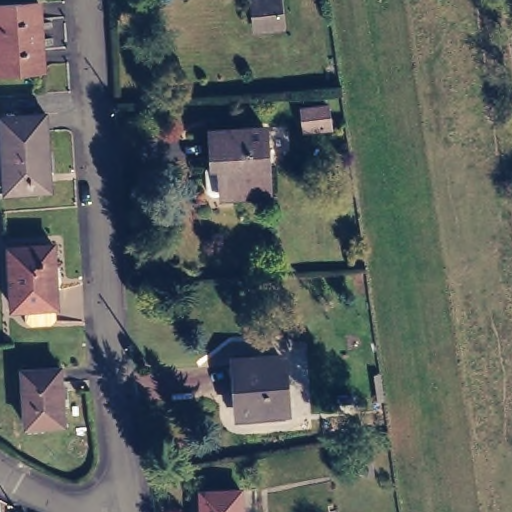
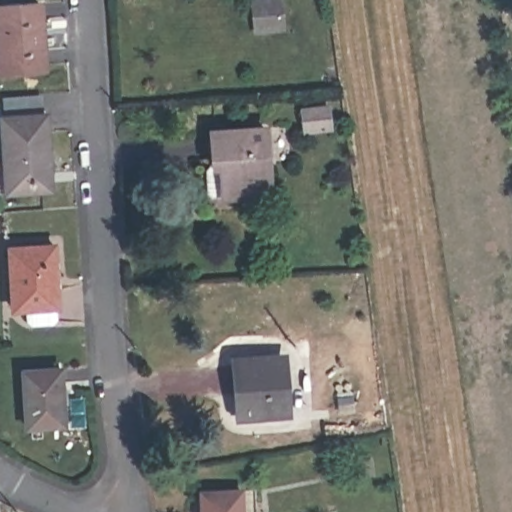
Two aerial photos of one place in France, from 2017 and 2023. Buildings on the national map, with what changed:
unchanged [(43,36),(0,38),(0,6),(41,3),(43,36)]
unchanged [(45,65),(0,68),(0,38),(43,36),(45,65)]
unchanged [(2,118),(50,115),(51,152),(4,155),(2,118)]
unchanged [(272,132),(276,198),(232,200),(231,169),(222,168),(220,135),(272,132)]
unchanged [(51,152),(53,188),(6,193),(4,155),(51,152)]
unchanged [(11,275),(9,245),(57,241),(60,272),(11,275)]
unchanged [(61,303),(13,307),(11,275),(60,272),(61,303)]
unchanged [(287,358),(292,411),(250,414),(245,362),(287,358)]
unchanged [(65,369),(69,425),(33,427),(29,371),(65,369)]
unchanged [(239,512),(200,512),(199,489),(238,487),(239,512)]

